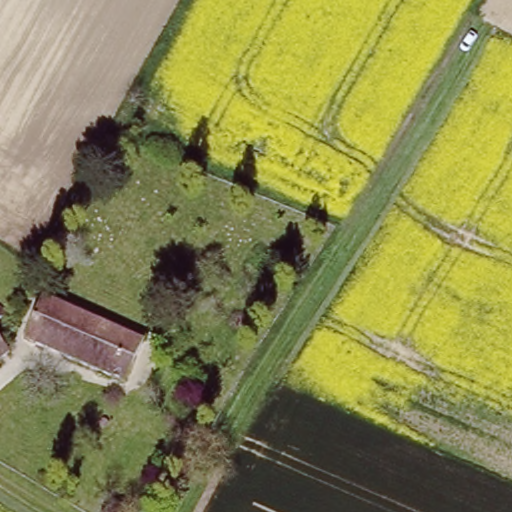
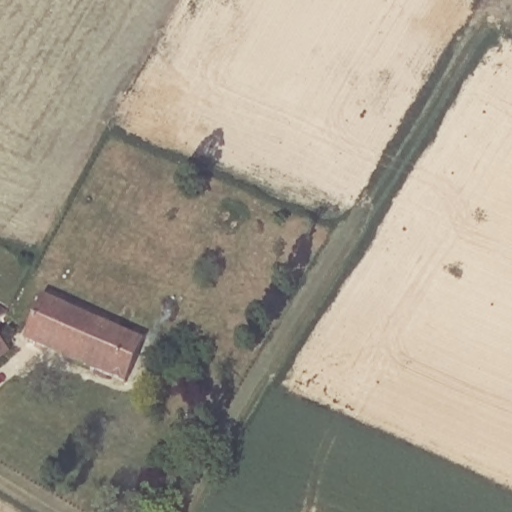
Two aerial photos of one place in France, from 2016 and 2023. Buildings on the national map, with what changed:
unchanged [(45,299),(141,340),(120,383),(20,341),(45,299)]
unchanged [(0,319),(0,310),(7,315),(0,319)]
unchanged [(0,365),(0,348),(8,360),(0,365)]

